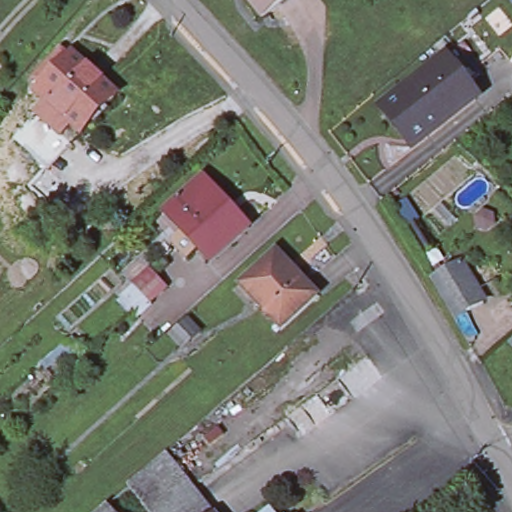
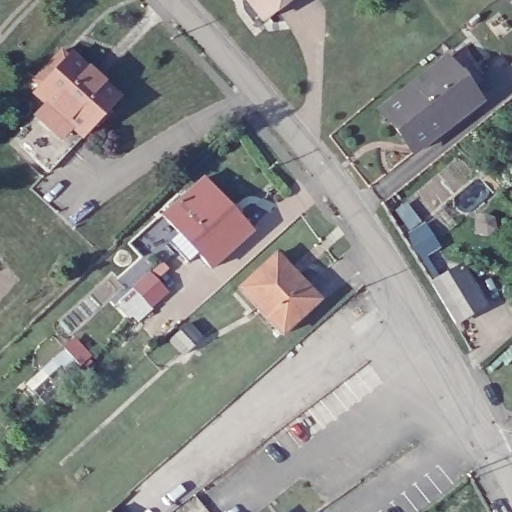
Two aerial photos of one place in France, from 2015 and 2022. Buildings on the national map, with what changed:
unchanged [(259,20),(243,0),(285,0),(259,20)]
unchanged [(42,88),(35,80),(62,51),(70,58),(73,56),(118,99),(71,147),(38,115),(48,104),(37,93),(42,88)]
unchanged [(411,156),(378,115),(441,65),(455,54),(476,81),(462,92),(473,107),(411,156)]
unchanged [(165,214),(203,180),(250,233),(211,267),(199,253),(189,262),(173,244),(183,234),(165,214)]
unchanged [(278,255),(319,301),(282,334),(240,288),(278,255)]
unchanged [(463,266),(488,304),(458,323),(433,284),(463,266)]
unchanged [(146,276),(162,295),(147,307),(131,288),(146,276)]
unchanged [(203,338),(184,354),(171,340),(190,323),(203,338)]
unchanged [(508,346),(512,342),(512,350),(508,346)]

